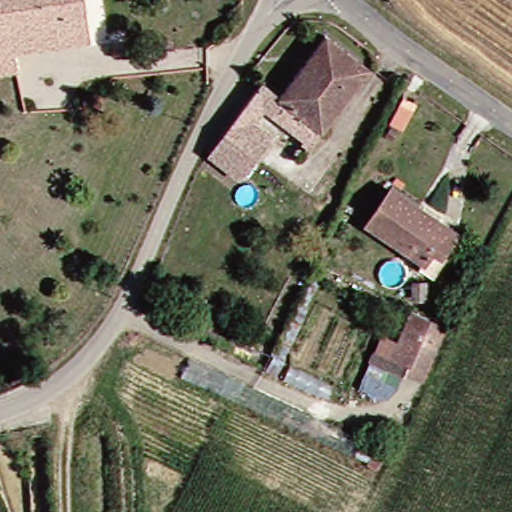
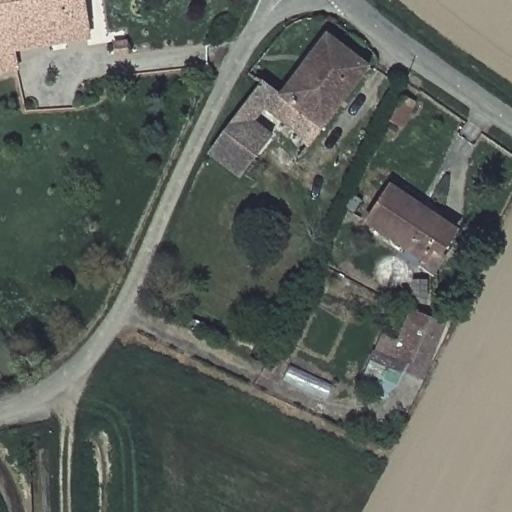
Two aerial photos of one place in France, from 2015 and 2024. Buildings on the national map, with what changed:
unchanged [(90,27),(16,42),(18,67),(0,70),(0,0),(84,0),(90,27)]
unchanged [(239,112),(260,82),(278,96),(323,37),(363,68),(299,160),(239,112)]
unchanged [(148,60),(132,62),(130,50),(143,47),(148,60)]
unchanged [(270,200),(211,151),(239,112),(299,160),(270,200)]
unchanged [(446,256),(438,252),(430,264),(376,225),(390,201),(400,189),(442,218),(462,234),(446,256)]
unchanged [(416,311),(453,326),(427,381),(391,366),(375,359),(385,334),(401,340),(416,311)]

